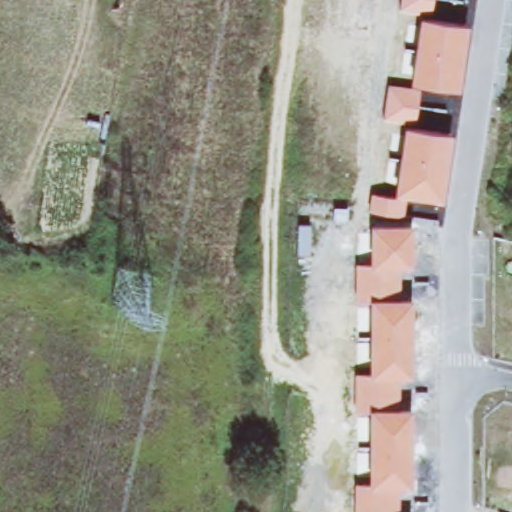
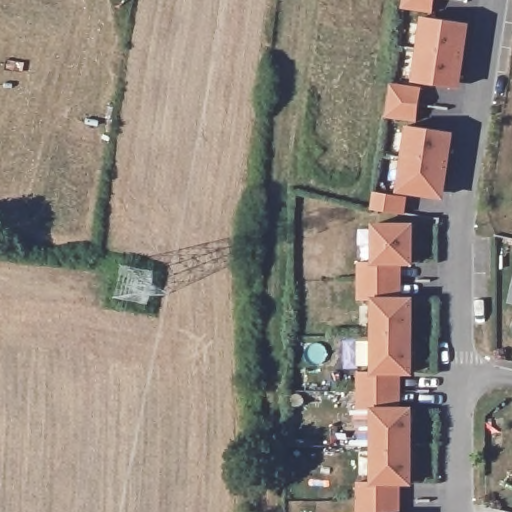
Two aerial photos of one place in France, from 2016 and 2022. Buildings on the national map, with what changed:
unchanged [(432,18),(470,23),(462,90),(422,84),(416,127),(454,133),(446,201),(410,197),(407,224),(413,224),(413,267),(404,267),(405,298),(413,298),(414,376),(402,377),(403,407),(413,406),(413,487),(402,487),(404,512),(357,512),(358,482),(370,481),(369,412),(357,413),(358,372),(372,371),(371,304),(357,305),(358,263),(370,262),(371,224),(374,192),(397,194),(405,123),(385,119),(390,81),(413,82),(422,14),(401,10),(402,0),(435,0),(432,18)]

